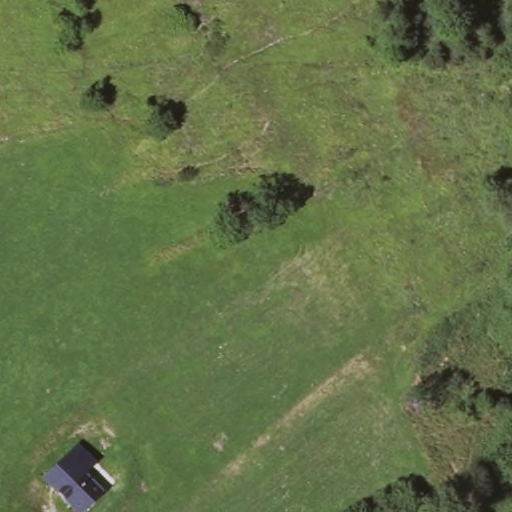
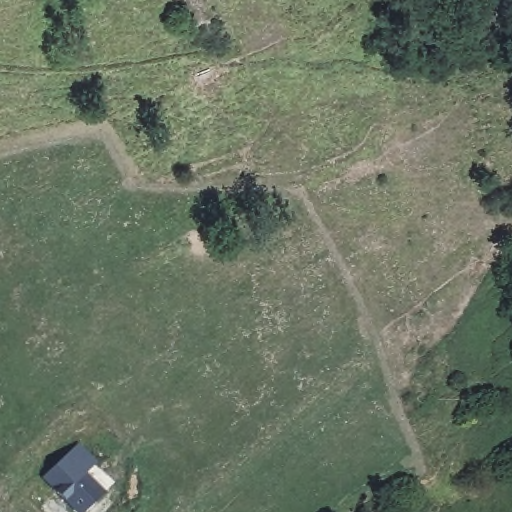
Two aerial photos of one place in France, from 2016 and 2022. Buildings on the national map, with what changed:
unchanged [(79,442),(97,462),(86,473),(105,492),(84,512),(73,512),(41,481),(79,442)]

